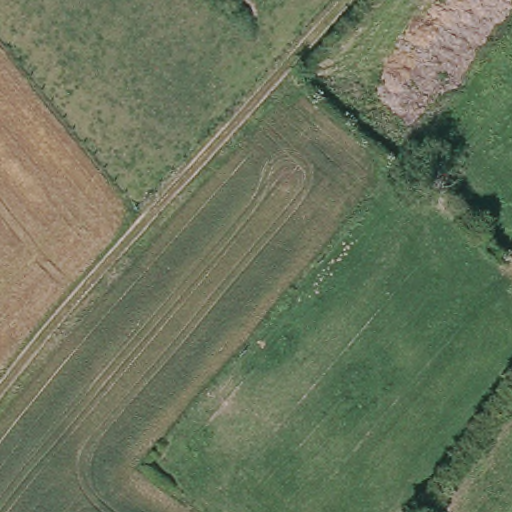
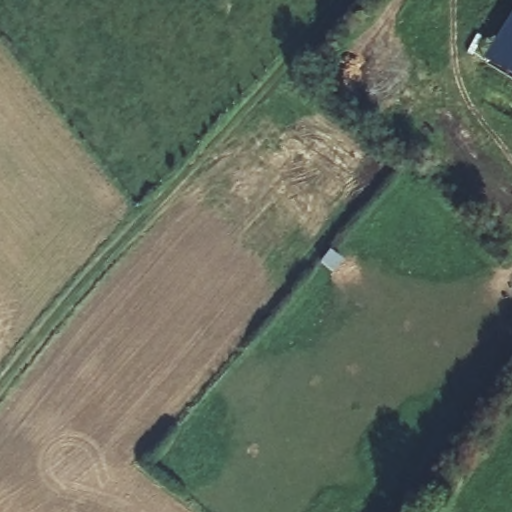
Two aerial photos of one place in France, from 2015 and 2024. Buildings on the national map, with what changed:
new [(512,15),(512,78),(483,60),(512,15)]

